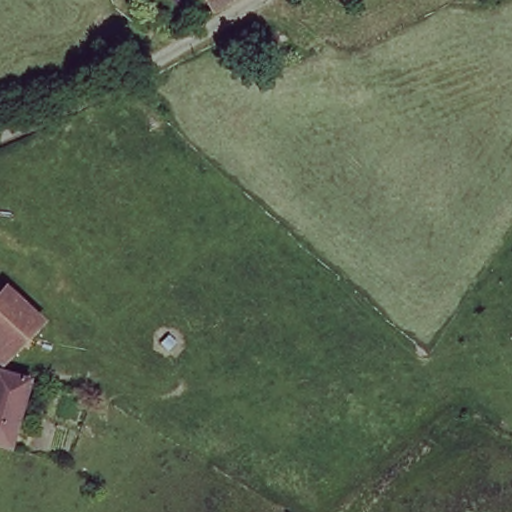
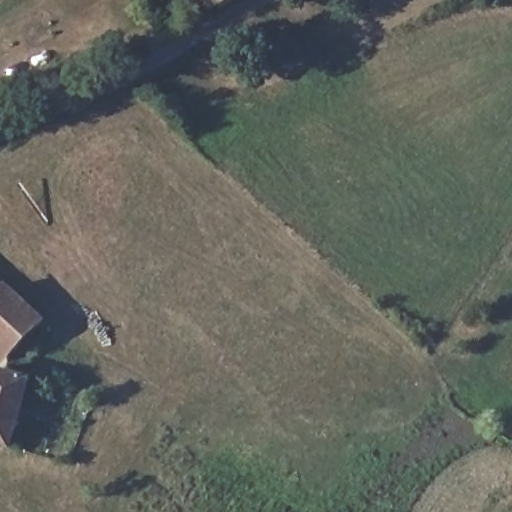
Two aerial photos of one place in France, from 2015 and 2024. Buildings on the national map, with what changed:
unchanged [(240,0),(224,10),(216,0),(240,0)]
unchanged [(43,335),(10,368),(0,358),(0,308),(8,299),(43,335)]
unchanged [(0,372),(23,378),(8,450),(0,447),(0,372)]

